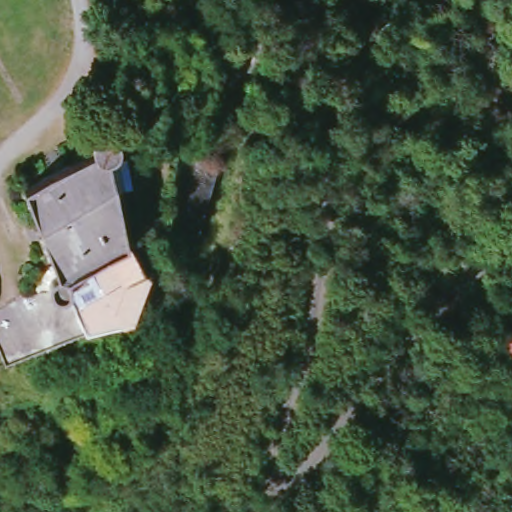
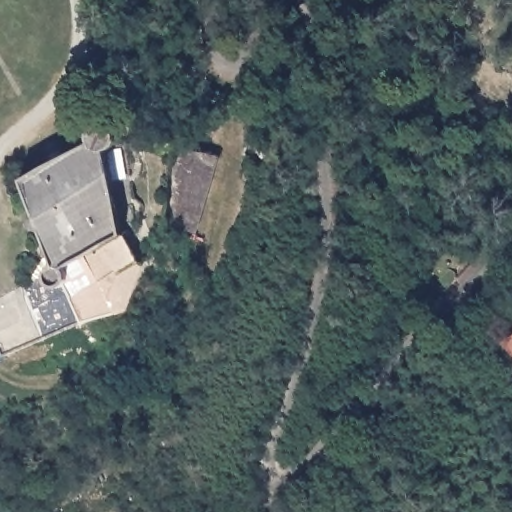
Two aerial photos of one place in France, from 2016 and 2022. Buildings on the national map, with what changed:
unchanged [(49,254),(22,185),(92,149),(90,137),(94,129),(103,123),(107,122),(112,122),(115,124),(120,126),(122,129),(124,130),(125,134),(127,138),(127,142),(127,145),(125,148),(124,151),(117,158),(107,162),(131,227),(151,265),(135,312),(84,323),(58,335),(17,293),(33,285),(49,254)]
unchanged [(220,155),(197,229),(164,219),(187,150),(202,152),(220,155)]
unchanged [(58,335),(3,361),(0,352),(0,303),(17,293),(58,335)]
unchanged [(503,345),(512,335),(512,353),(503,345)]

